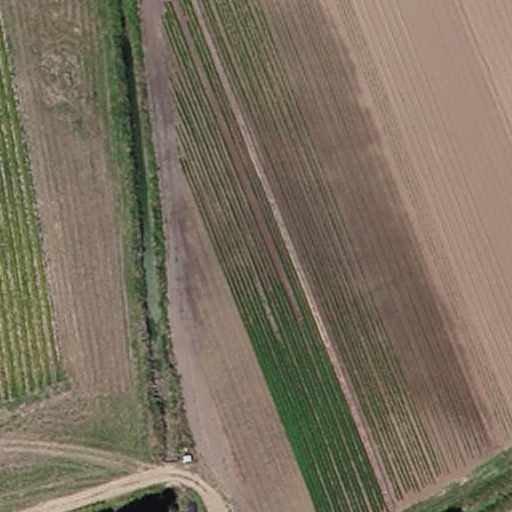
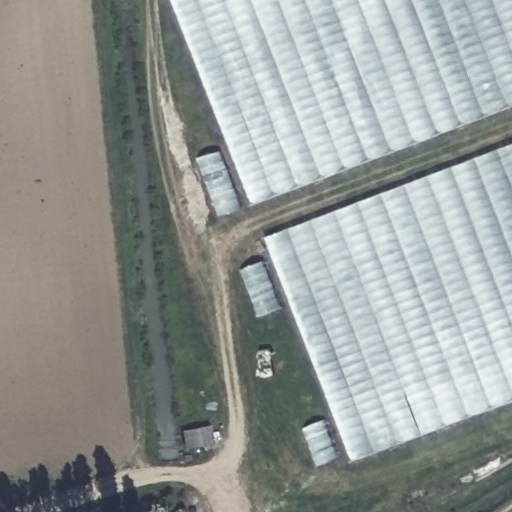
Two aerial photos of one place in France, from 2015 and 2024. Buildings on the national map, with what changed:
new [(168,0),(512,0),(512,108),(250,208),(168,0)]
new [(512,401),(356,462),(266,238),(512,145),(512,401)]

